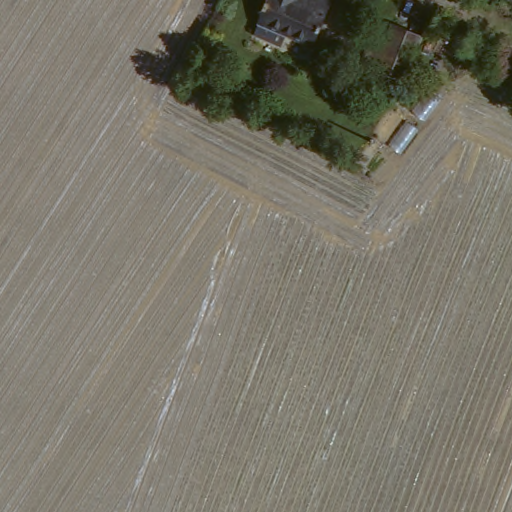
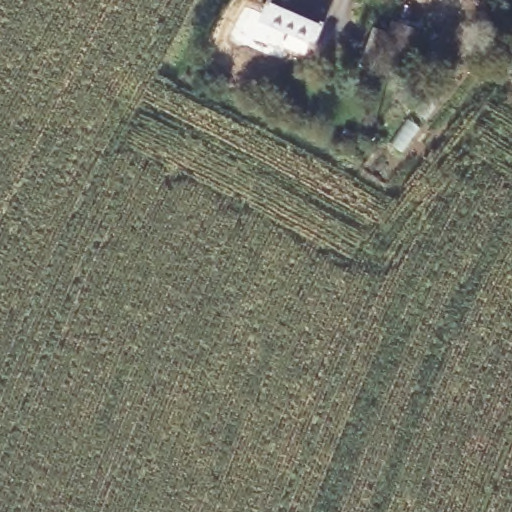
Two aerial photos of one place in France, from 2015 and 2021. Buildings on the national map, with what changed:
unchanged [(255,17),(268,0),(321,0),(331,7),(303,50),(277,33),(268,47),(244,31),(254,18),(255,17)]
unchanged [(379,28),(391,35),(398,22),(426,38),(406,81),(362,59),(379,28)]

